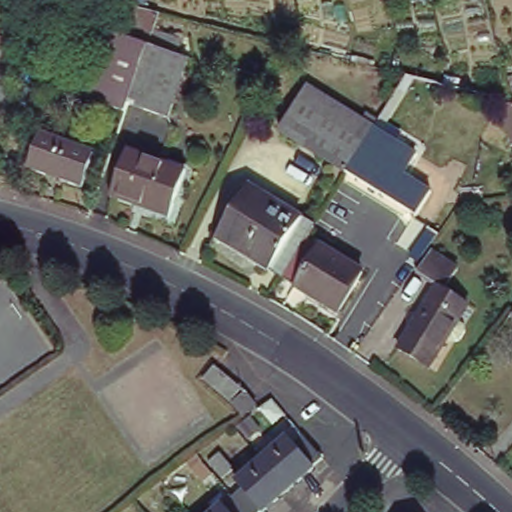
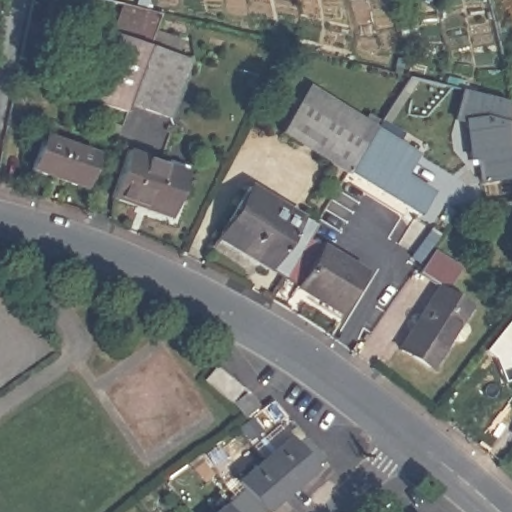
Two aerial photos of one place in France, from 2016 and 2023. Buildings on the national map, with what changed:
unchanged [(104,48),(115,19),(155,29),(148,48),(144,62),(104,48)]
unchanged [(80,113),(104,48),(144,62),(122,119),(120,126),(80,113)]
unchanged [(173,56),(168,69),(184,75),(161,132),(122,119),(144,62),(148,48),(173,56)]
unchanged [(283,133),(310,87),(377,128),(350,173),(283,133)]
new [(476,158),(468,159),(464,123),(454,118),(462,89),(510,102),(512,122),(512,181),(480,184),(476,158)]
unchanged [(512,101),(512,122),(510,102),(512,101)]
unchanged [(67,128),(63,141),(97,155),(85,188),(35,169),(51,122),(67,128)]
unchanged [(420,154),(407,174),(434,190),(420,215),(350,173),(377,128),(420,154)]
unchanged [(134,206),(110,197),(126,150),(185,171),(170,212),(167,218),(134,206)]
unchanged [(220,237),(251,186),(317,227),(311,238),(287,278),(220,237)]
unchanged [(366,273),(343,312),(287,278),(311,238),(366,273)]
unchanged [(405,319),(407,315),(415,314),(417,315),(436,285),(417,273),(431,251),(459,269),(445,290),(468,306),(428,369),(397,349),(410,329),(407,327),(405,319)]
unchanged [(512,308),(512,327),(505,310),(512,308)]
unchanged [(245,390),(257,406),(242,418),(232,405),(204,379),(215,365),(245,390)]
unchanged [(283,412),(259,432),(247,418),(272,400),(283,412)]
unchanged [(219,500),(227,492),(232,498),(237,493),(232,486),(288,438),(293,445),(305,436),(323,459),(261,512),(214,512),(222,505),(219,500)]
unchanged [(209,462),(220,452),(234,468),(222,478),(209,462)]
unchanged [(192,469),(201,461),(218,480),(209,489),(192,469)]

